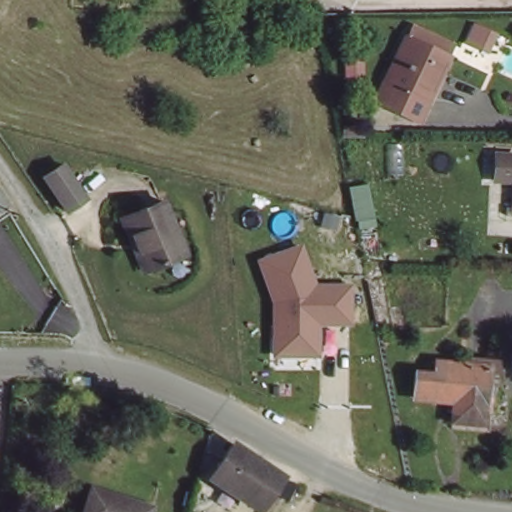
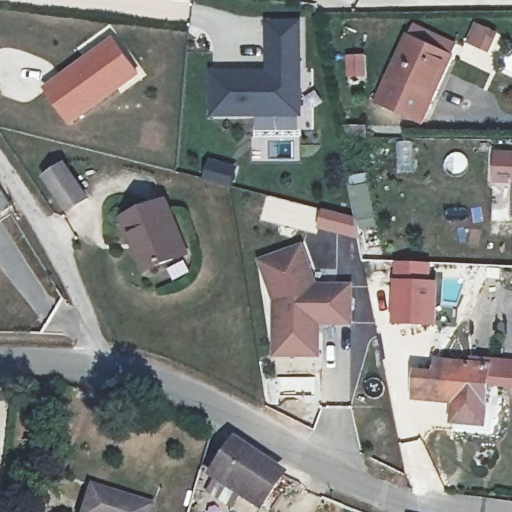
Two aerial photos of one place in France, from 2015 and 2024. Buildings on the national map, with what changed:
new [(208,115),(209,70),(266,70),(267,20),(301,19),(302,116),(208,115)]
unchanged [(415,131),(368,104),(405,41),(410,33),(452,58),(447,67),(449,68),(415,131)]
new [(112,37),(137,74),(68,126),(44,88),(112,37)]
new [(415,141),(416,173),(396,174),(395,141),(415,141)]
new [(49,150),(74,182),(56,196),(32,164),(49,150)]
unchanged [(512,185),(494,185),(493,158),(512,158),(512,185)]
new [(348,185),(370,181),(380,228),(359,232),(359,239),(313,229),(319,206),(354,214),(348,185)]
unchanged [(0,209),(0,188),(2,188),(10,204),(3,209),(1,210),(0,209)]
unchanged [(181,259),(147,273),(134,238),(128,239),(121,219),(160,204),(181,259)]
unchanged [(301,243),(315,282),(352,283),(352,327),(320,327),(320,358),(270,355),(272,302),(256,260),(301,243)]
new [(393,259),(433,262),(432,278),(439,278),(437,327),(391,325),(393,259)]
unchanged [(432,381),(434,367),(466,369),(467,362),(495,366),(493,387),(486,386),(482,431),(451,429),(453,404),(410,402),(410,378),(432,381)]
new [(512,389),(493,387),(495,366),(512,368),(512,389)]
unchanged [(266,512),(261,512),(214,484),(238,445),(286,477),(266,512)]
unchanged [(155,506),(153,512),(89,512),(95,489),(155,506)]

